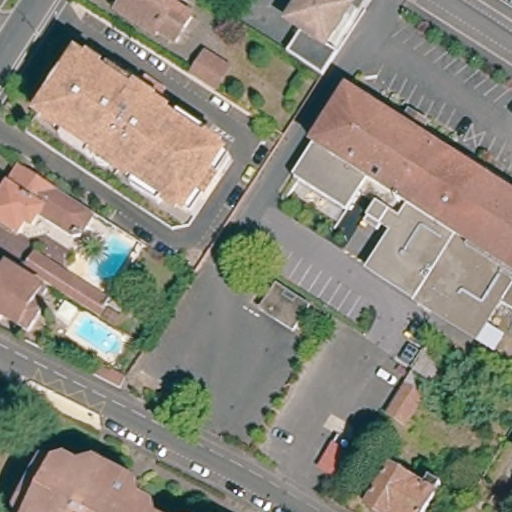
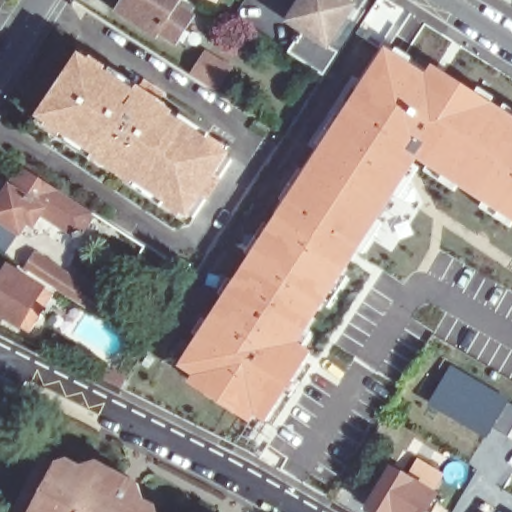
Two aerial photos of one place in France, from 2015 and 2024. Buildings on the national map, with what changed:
unchanged [(129,0),(179,0),(174,7),(193,18),(177,42),(159,32),(158,34),(122,10),(129,0)]
unchanged [(302,36),(290,27),(307,0),(336,0),(352,11),(328,48),(339,55),(323,79),(289,57),(302,36)]
unchanged [(175,222),(37,131),(30,126),(53,92),(68,69),(80,50),(86,55),(109,69),(114,61),(141,80),(139,83),(160,97),(157,102),(226,148),(234,154),(224,169),(208,193),(196,213),(191,220),(175,222)]
new [(454,96),(460,86),(512,120),(512,221),(459,185),(456,189),(414,162),(349,260),(280,215),(385,51),(454,96)]
unchanged [(203,64),(209,54),(232,69),(227,78),(218,91),(195,77),(203,64)]
demolished [(496,297),(479,322),(485,327),(477,339),(413,299),(443,249),(477,269),(483,259),(465,248),(468,242),(365,177),(345,209),(292,175),(342,97),(379,120),(381,117),(398,127),(414,137),(429,147),(427,150),(500,195),(502,192),(512,198),(512,308),(496,297)]
unchanged [(82,230),(84,235),(75,236),(74,233),(43,213),(35,225),(28,221),(21,232),(0,218),(0,205),(24,168),(94,213),(82,230)]
demolished [(390,232),(368,219),(377,205),(400,218),(405,208),(451,237),(443,249),(413,299),(366,270),(390,232)]
new [(349,260),(344,274),(349,277),(328,307),(323,304),(307,330),(310,333),(302,345),(312,353),(266,423),(254,417),(251,423),(188,382),(193,376),(177,367),(278,213),(280,215),(349,260)]
unchanged [(36,255),(66,274),(56,289),(26,269),(36,255)]
unchanged [(43,288),(33,303),(43,310),(30,331),(5,316),(3,320),(0,319),(0,281),(9,266),(43,288)]
demolished [(277,286),(309,307),(293,330),(261,309),(277,286)]
new [(509,398),(507,403),(512,405),(512,428),(508,433),(493,426),(486,437),(427,406),(452,365),(509,398)]
demolished [(411,376),(430,388),(406,425),(388,413),(411,376)]
demolished [(337,444),(357,456),(344,477),(324,464),(337,444)]
unchanged [(76,468),(78,465),(99,463),(137,484),(142,499),(140,503),(154,511),(154,512),(15,512),(15,511),(44,457),(58,464),(63,461),(76,468)]
unchanged [(425,485),(434,491),(430,499),(432,500),(425,512),(364,512),(388,473),(420,493),(425,485)]

